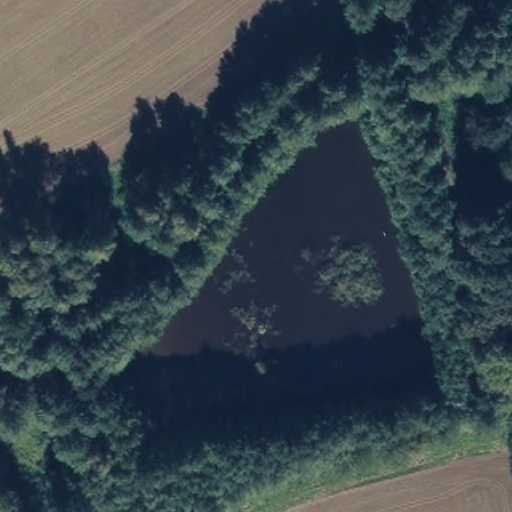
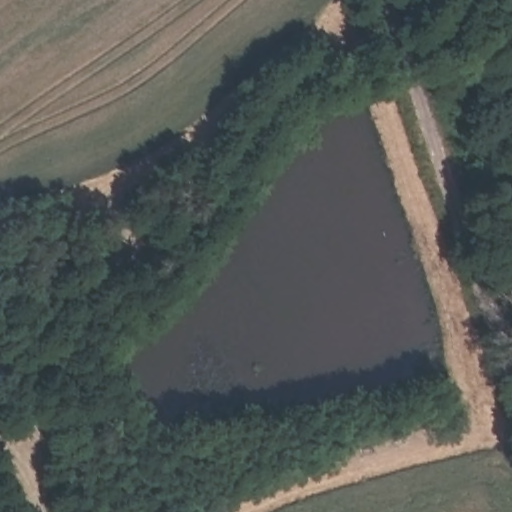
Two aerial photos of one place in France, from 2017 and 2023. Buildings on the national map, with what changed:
unchanged [(54,252),(65,263),(46,288),(28,273),(46,247),(54,252)]

